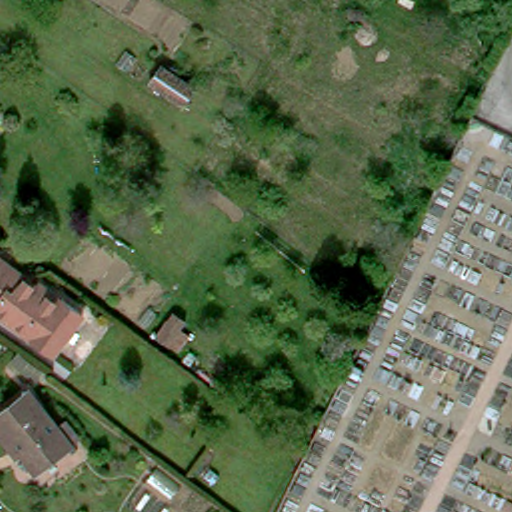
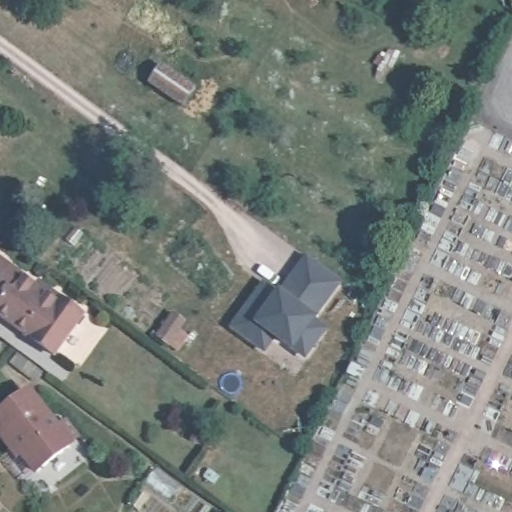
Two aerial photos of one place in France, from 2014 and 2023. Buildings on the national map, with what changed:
unchanged [(196,87),(185,105),(151,84),(162,65),(196,87)]
unchanged [(72,330),(58,348),(0,306),(0,250),(29,271),(27,273),(60,297),(64,292),(88,308),(72,330)]
new [(248,338),(232,326),(263,284),(282,298),(290,289),(286,286),(307,256),(339,280),(310,318),(315,322),(317,335),(303,355),(274,333),(262,348),(248,338)]
unchanged [(80,438),(70,445),(72,446),(37,471),(15,444),(10,447),(0,433),(0,412),(30,391),(58,428),(67,420),(80,438)]

